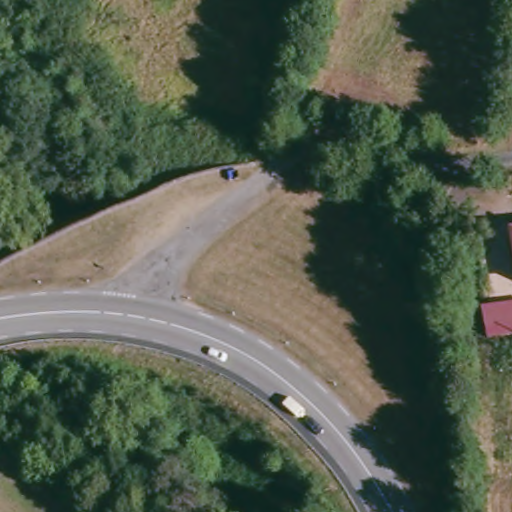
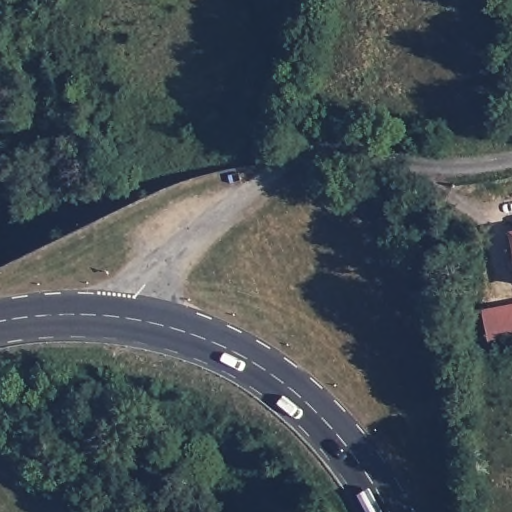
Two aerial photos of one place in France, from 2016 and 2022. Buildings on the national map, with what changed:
unchanged [(512,309),(512,338),(488,341),(485,313),(512,309)]

